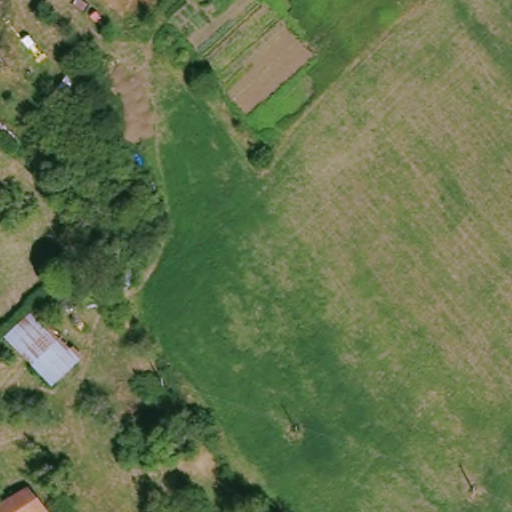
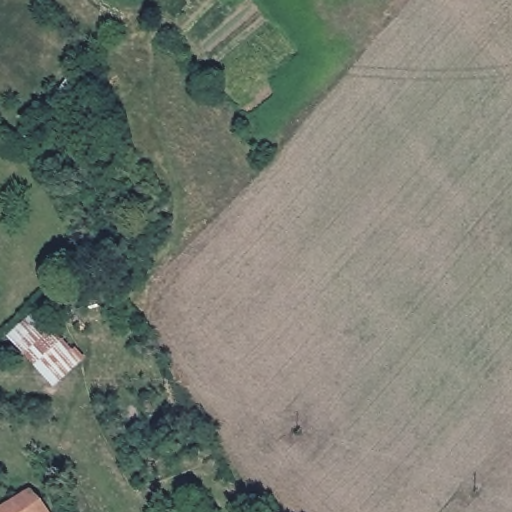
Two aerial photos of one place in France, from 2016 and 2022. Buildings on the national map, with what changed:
unchanged [(35,307),(82,356),(50,393),(4,337),(35,307)]
unchanged [(30,490),(31,490),(35,488),(52,512),(0,512),(0,510),(30,490)]

